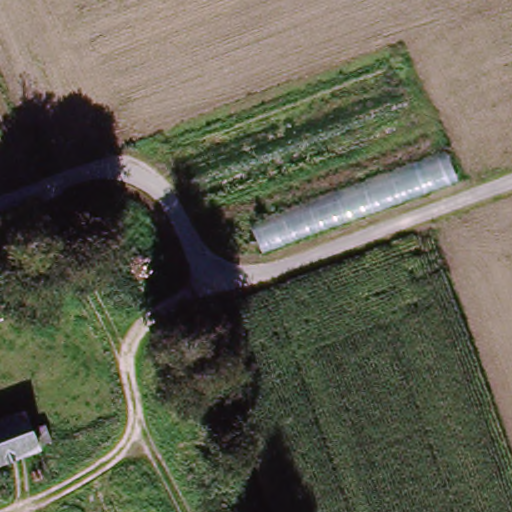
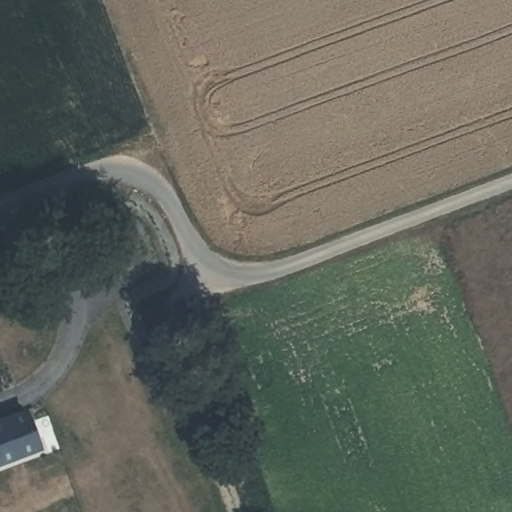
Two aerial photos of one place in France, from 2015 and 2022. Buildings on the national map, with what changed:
demolished [(444,153),(456,188),(260,259),(247,230),(444,153)]
unchanged [(23,405),(32,429),(41,454),(0,470),(0,414),(23,405)]

